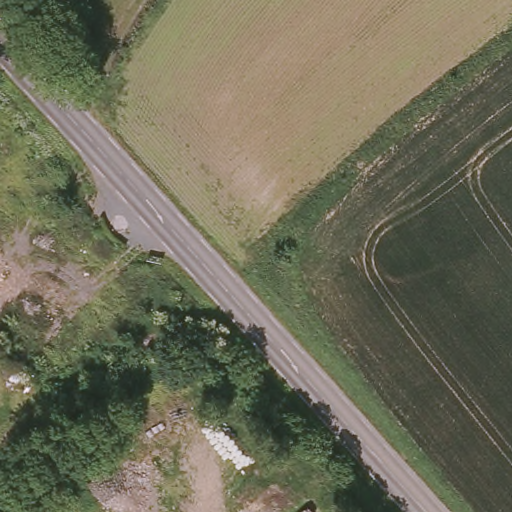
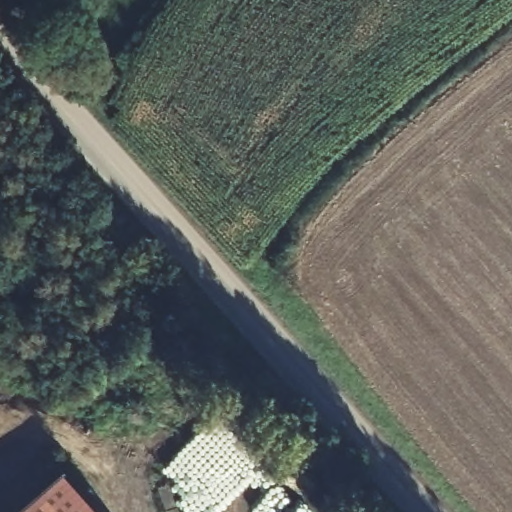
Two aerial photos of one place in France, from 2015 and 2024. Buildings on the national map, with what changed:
unchanged [(149,247),(170,265),(155,281),(135,262),(149,247)]
new [(61,478),(91,512),(22,512),(61,478)]

